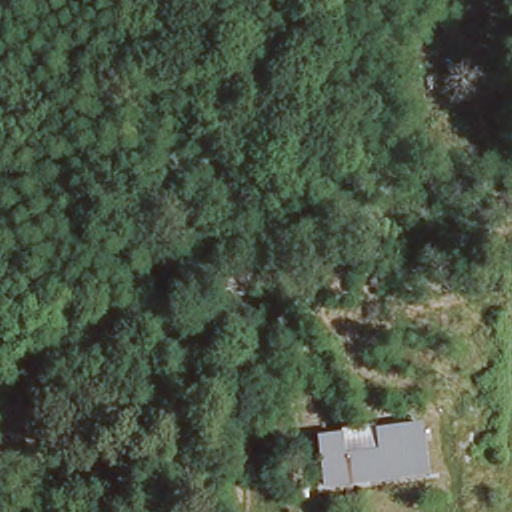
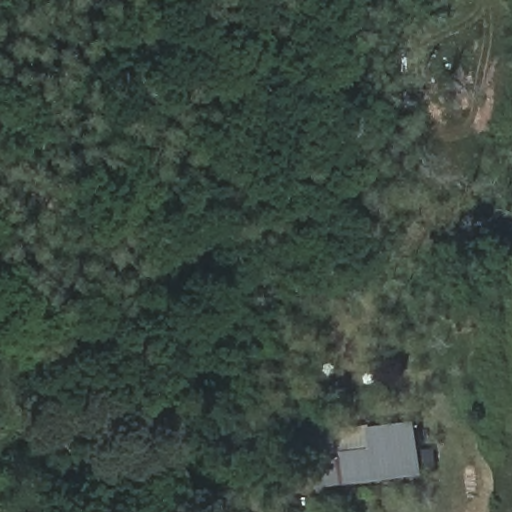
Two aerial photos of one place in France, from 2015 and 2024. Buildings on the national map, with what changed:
unchanged [(310,434),(337,430),(340,451),(373,447),(371,426),(416,420),(424,473),(319,488),(310,434)]

